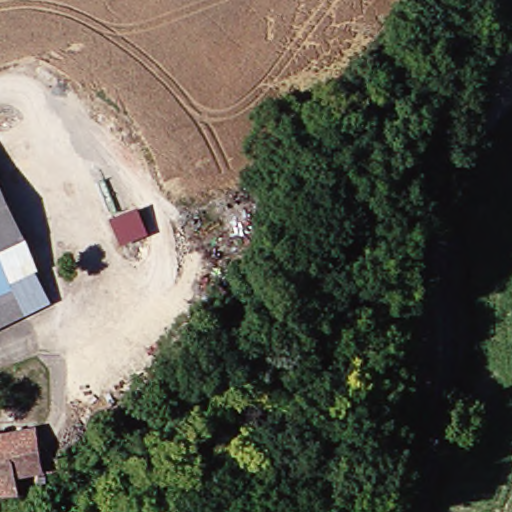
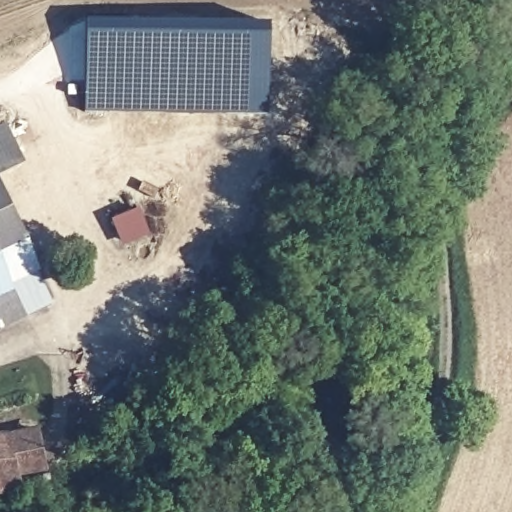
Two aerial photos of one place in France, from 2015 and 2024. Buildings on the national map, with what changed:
new [(86,20),(270,22),(267,115),(85,111),(86,20)]
new [(7,126),(26,162),(0,174),(0,130),(7,126)]
unchanged [(17,239),(0,247),(0,204),(17,239)]
new [(126,249),(112,224),(137,210),(151,235),(126,249)]
unchanged [(17,239),(32,268),(0,285),(0,247),(17,239)]
unchanged [(32,268),(50,300),(0,326),(0,285),(32,268)]
demolished [(197,330),(137,380),(117,356),(176,302),(197,330)]
unchanged [(0,482),(0,435),(5,435),(29,430),(38,462),(14,465),(15,481),(0,482)]

